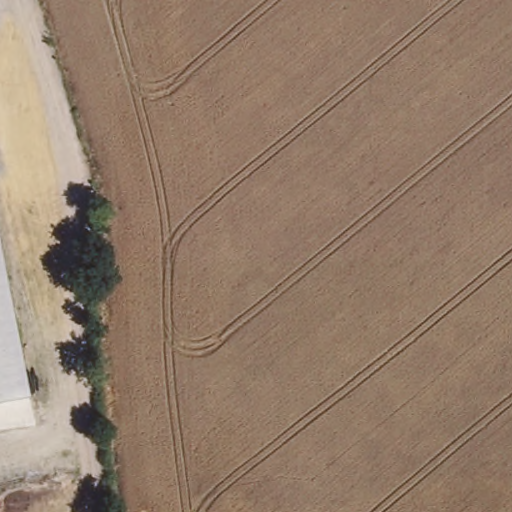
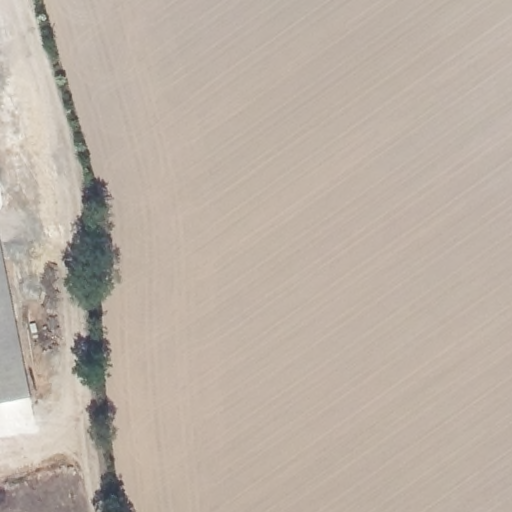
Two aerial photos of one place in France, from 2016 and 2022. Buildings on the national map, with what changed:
unchanged [(31,396),(0,402),(0,237),(31,396)]

